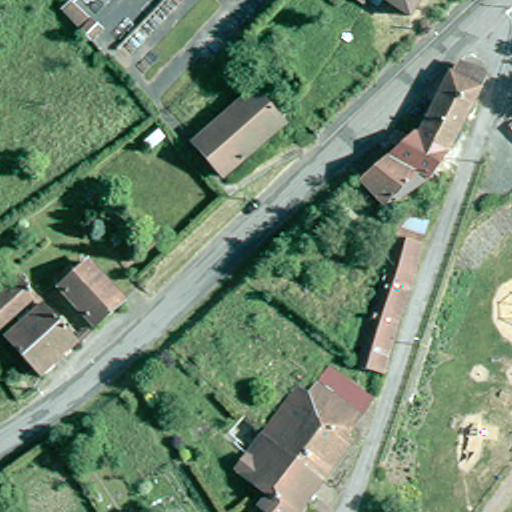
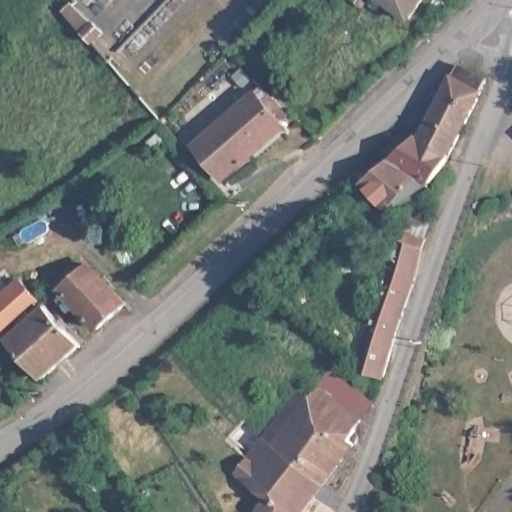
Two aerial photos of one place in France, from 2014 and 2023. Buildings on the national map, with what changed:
unchanged [(420,11),(403,0),(427,0),(420,11)]
unchanged [(427,144),(455,82),(460,71),(489,82),(484,93),(482,99),(452,156),(437,174),(432,172),(397,160),(421,141),(427,144)]
unchanged [(263,88),(292,122),(230,173),(202,138),(263,88)]
unchanged [(392,204),(369,180),(397,160),(432,172),(392,204)]
unchanged [(377,311),(391,275),(400,250),(397,249),(402,237),(428,245),(415,281),(398,332),(385,380),(360,373),(377,311)]
unchanged [(129,300),(102,325),(67,293),(60,286),(77,270),(84,277),(95,267),(129,300)]
unchanged [(9,337),(0,329),(0,305),(23,281),(44,301),(9,337)]
unchanged [(50,308),(85,341),(50,376),(15,343),(50,308)]
unchanged [(284,420),(298,400),(308,405),(319,390),(346,406),(358,386),(381,400),(369,420),(358,438),(360,440),(354,450),(352,448),(330,476),(280,443),(293,425),(284,420)]
unchanged [(270,512),(265,508),(272,495),(244,476),(271,437),(280,443),(330,476),(302,512),(270,512)]

